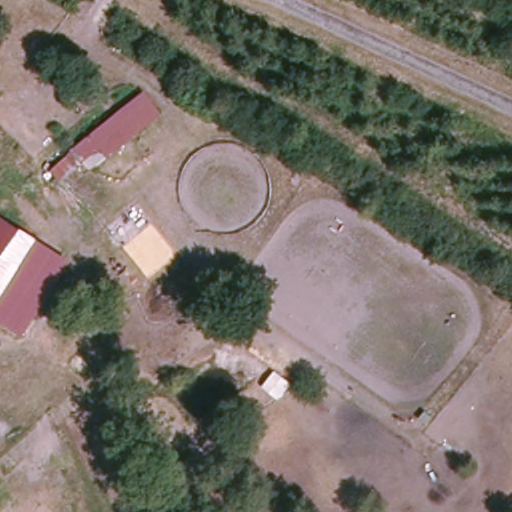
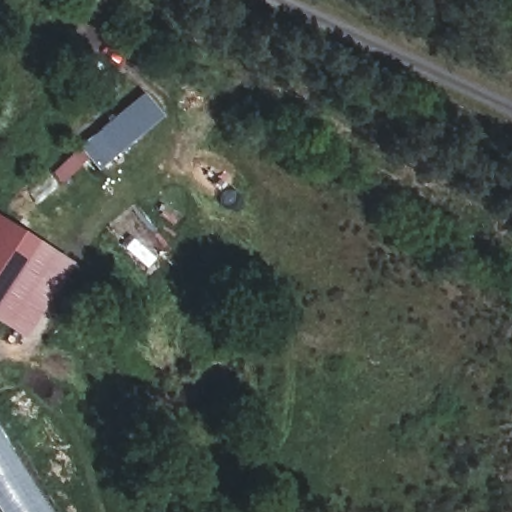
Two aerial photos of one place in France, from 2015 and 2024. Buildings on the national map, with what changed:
unchanged [(100,150),(89,160),(81,149),(142,96),(159,115),(113,156),(109,160),(100,150)]
unchanged [(14,225),(0,248),(0,216),(14,225)]
unchanged [(0,303),(0,248),(14,225),(39,241),(0,303)]
unchanged [(0,318),(0,303),(39,241),(45,244),(64,256),(57,267),(17,329),(0,318)]
new [(0,506),(0,426),(56,512),(4,512),(0,506)]

